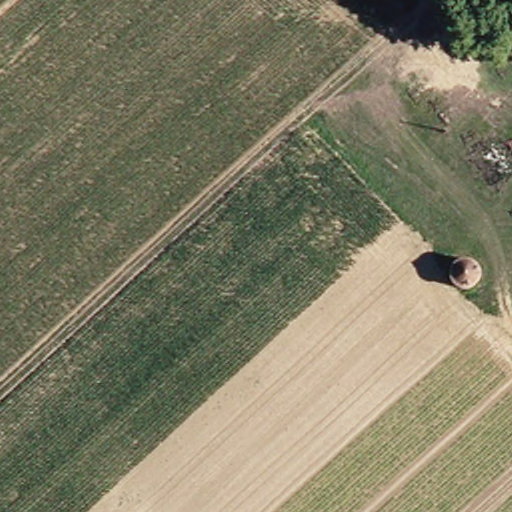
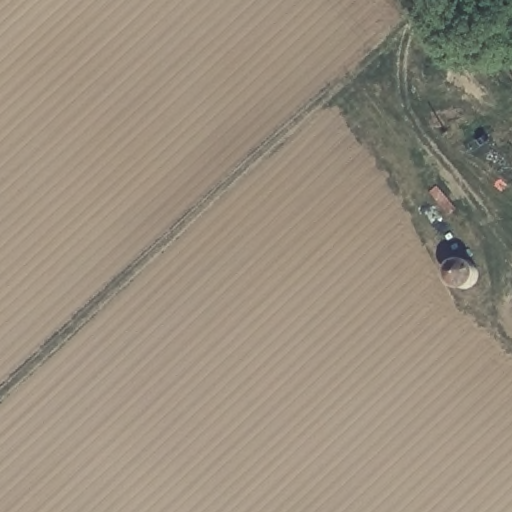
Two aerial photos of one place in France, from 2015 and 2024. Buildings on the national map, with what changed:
unchanged [(471,283),(467,289),(463,293),(457,294),(450,292),(445,287),(442,280),(443,275),(447,269),(452,265),(462,265),(465,268),(470,273),(471,279),(471,283)]

